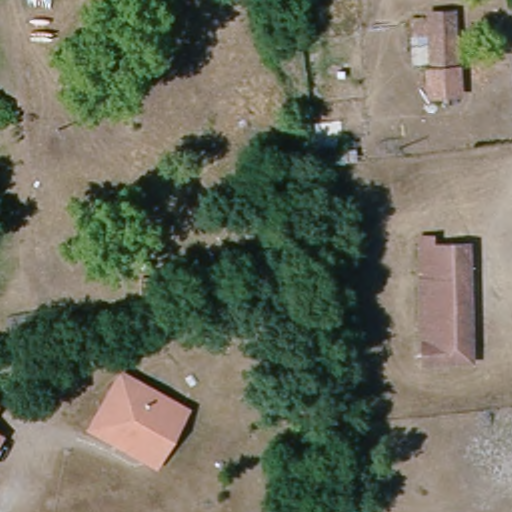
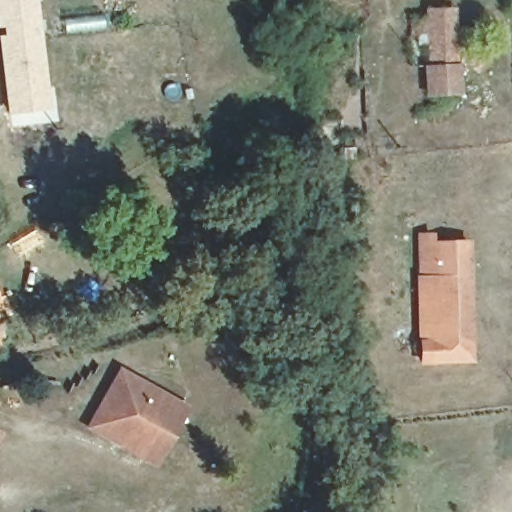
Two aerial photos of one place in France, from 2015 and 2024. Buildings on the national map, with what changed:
new [(46,88),(54,87),(58,121),(33,124),(31,114),(9,118),(4,96),(0,68),(0,0),(38,0),(40,10),(46,88)]
unchanged [(427,20),(456,17),(461,70),(463,97),(435,99),(432,72),(427,20)]
unchanged [(440,105),(453,104),(454,122),(442,124),(440,105)]
unchanged [(199,195),(204,210),(180,216),(178,201),(199,195)]
unchanged [(472,352),(424,354),(421,242),(472,240),(472,352)]
new [(0,311),(0,305),(1,310),(0,311)]
unchanged [(155,461),(143,453),(92,425),(121,372),(172,400),(187,410),(155,461)]

